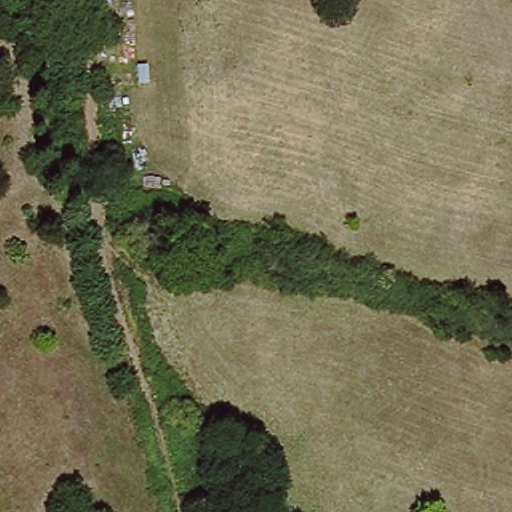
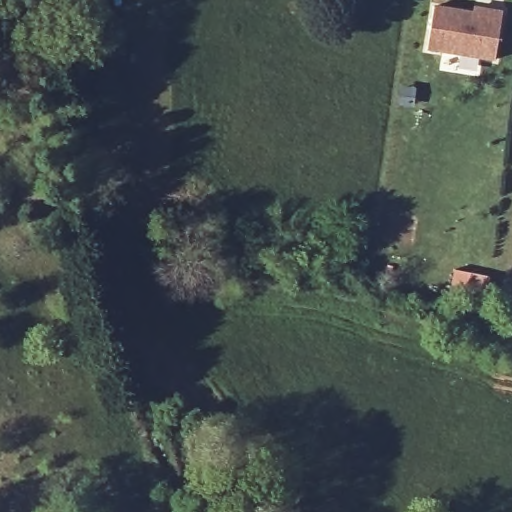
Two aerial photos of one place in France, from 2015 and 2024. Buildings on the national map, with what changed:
new [(429,49),(435,5),(475,11),(476,6),(503,11),(494,59),(429,49)]

